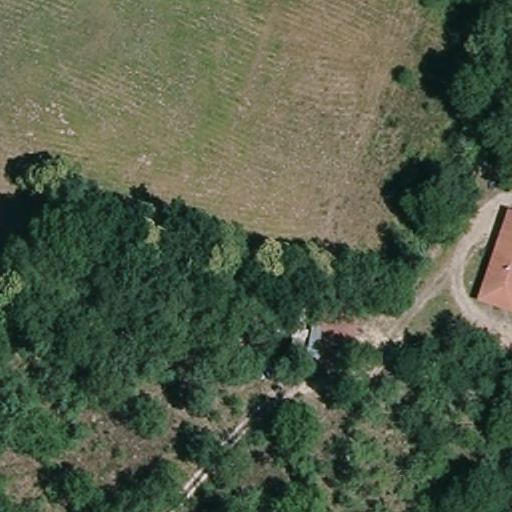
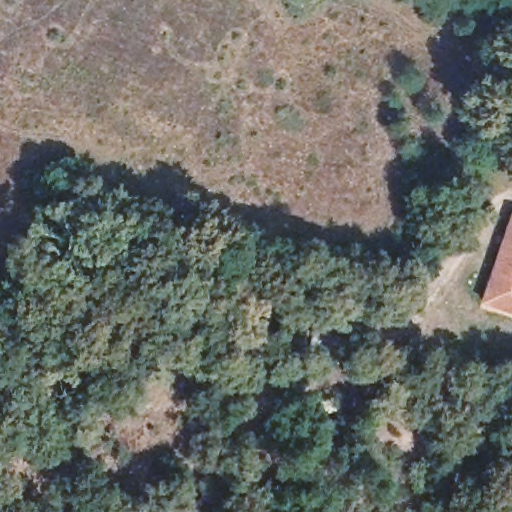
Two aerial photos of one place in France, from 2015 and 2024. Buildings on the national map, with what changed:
unchanged [(512,210),(512,253),(497,249),(511,209),(512,210)]
unchanged [(512,290),(485,284),(497,249),(512,253),(512,290)]
unchanged [(485,284),(512,290),(512,309),(480,298),(485,284)]

